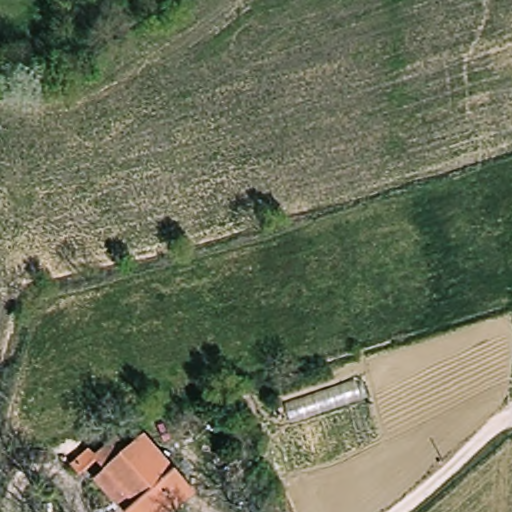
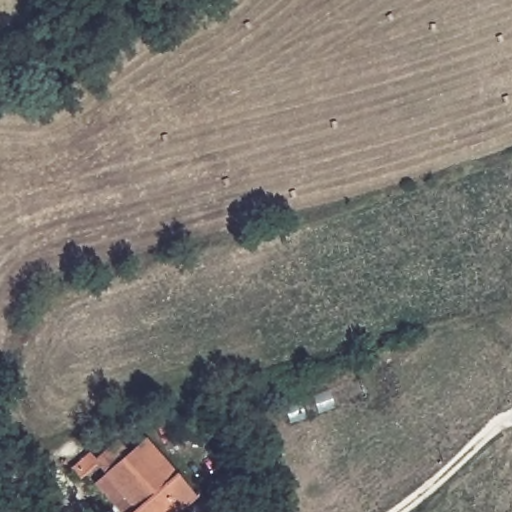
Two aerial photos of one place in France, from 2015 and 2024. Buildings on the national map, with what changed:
unchanged [(100,465),(99,464),(84,479),(77,472),(95,454),(99,458),(120,437),(133,450),(145,437),(199,492),(179,512),(127,512),(99,483),(109,474),(100,465)]

